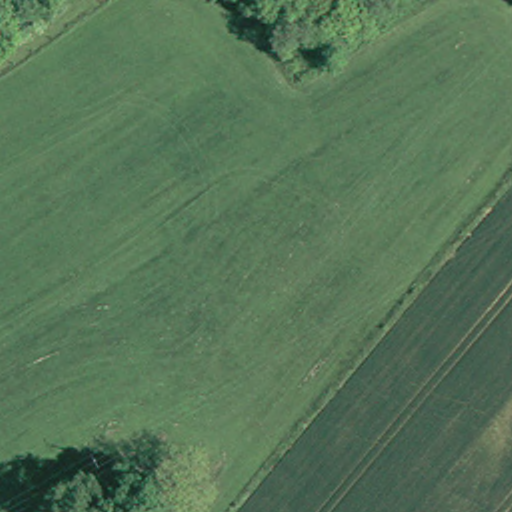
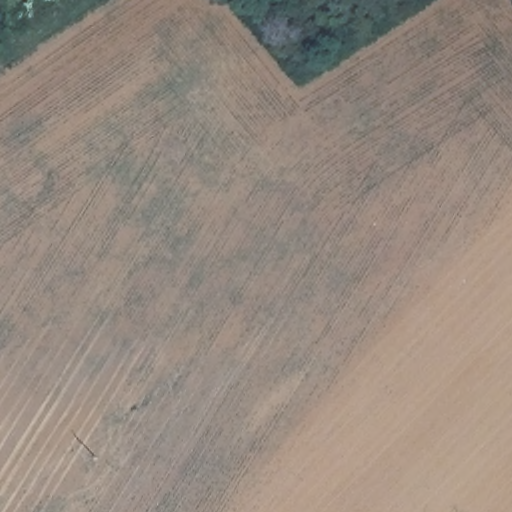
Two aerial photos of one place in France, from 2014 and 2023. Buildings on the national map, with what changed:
[]

